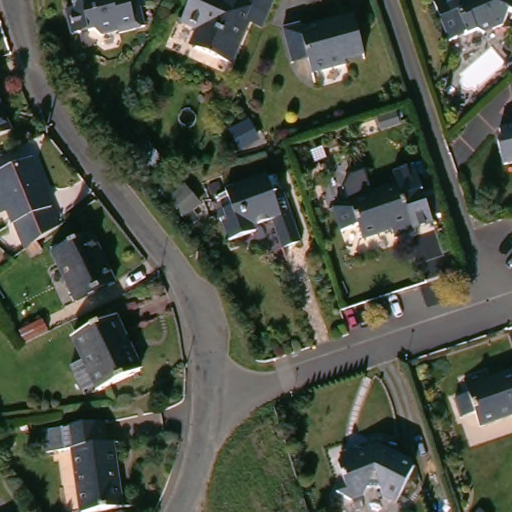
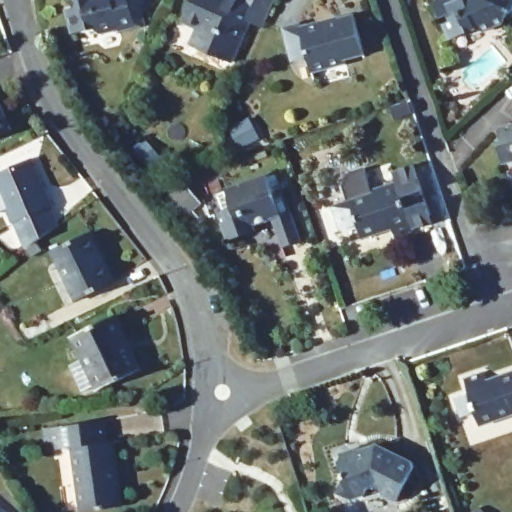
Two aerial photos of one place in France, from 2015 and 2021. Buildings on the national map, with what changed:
unchanged [(156,2),(152,3),(155,22),(128,27),(127,24),(110,27),(104,23),(80,27),(76,3),(85,2),(85,0),(156,0),(156,2)]
unchanged [(245,42),(237,62),(206,48),(201,39),(207,25),(187,16),(194,0),(279,0),(276,7),(259,48),(245,42)]
unchanged [(466,1),(468,0),(512,0),(512,27),(497,33),(487,30),(459,40),(446,0),(466,0),(466,1)]
unchanged [(310,26),(363,12),(373,50),(356,55),(357,61),(322,71),(317,54),(300,59),(291,25),(307,21),(310,26)]
unchanged [(0,90),(10,86),(28,130),(0,142),(0,90)]
unchanged [(510,125),(512,124),(512,131),(510,125)]
unchanged [(509,139),(512,138),(512,151),(509,139)]
unchanged [(17,201),(5,206),(0,194),(0,170),(5,169),(46,153),(65,201),(64,202),(70,220),(59,229),(37,245),(25,216),(24,217),(17,201)]
unchanged [(358,199),(353,183),(359,171),(375,165),(381,187),(408,178),(404,166),(425,159),(443,213),(422,220),(425,228),(405,235),(402,227),(375,236),(371,221),(353,227),(345,203),(358,199)]
unchanged [(284,184),(295,181),(310,234),(290,241),(280,211),(260,217),(261,223),(237,230),(229,201),(241,198),(236,181),(279,168),(284,184)]
unchanged [(83,302),(59,252),(98,234),(121,283),(83,302)]
unchanged [(153,366),(112,385),(110,381),(96,388),(84,362),(96,356),(85,332),(127,312),(153,366)]
unchanged [(56,331),(32,342),(27,331),(50,320),(56,331)]
unchanged [(464,399),(477,394),(473,381),(495,373),(497,380),(512,375),(512,421),(490,429),(485,414),(471,419),(464,399)]
unchanged [(130,508),(95,512),(87,512),(79,449),(64,451),(60,426),(110,420),(113,444),(120,443),(130,508)]
unchanged [(374,446),(391,440),(422,457),(425,464),(408,491),(394,484),(392,476),(378,480),(376,488),(361,492),(350,485),(355,472),(350,456),(373,450),(374,446)]

